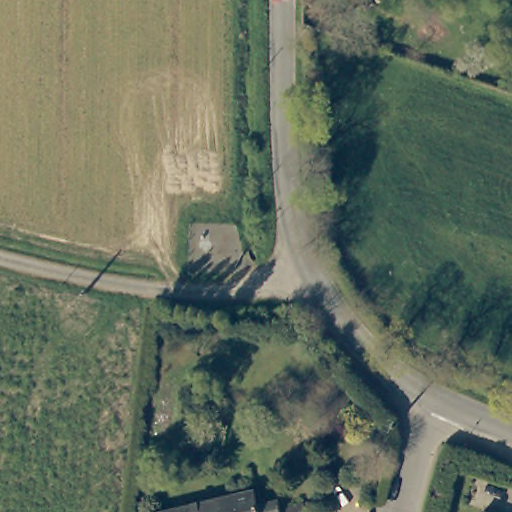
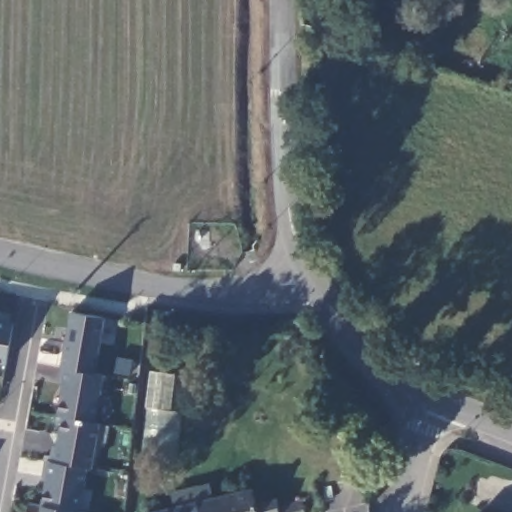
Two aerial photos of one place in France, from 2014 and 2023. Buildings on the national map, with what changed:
unchanged [(301,0),(308,0),(342,12),(337,35),(312,26),(301,22),(301,0)]
new [(95,373),(103,375),(95,422),(99,423),(91,469),(86,467),(80,512),(26,512),(28,502),(40,506),(44,483),(39,482),(43,460),(48,461),(52,462),(53,453),(50,452),(51,446),(56,446),(62,415),(57,413),(62,385),(57,383),(71,312),(104,318),(95,373)]
new [(6,366),(0,364),(0,320),(13,322),(6,366)]
new [(171,411),(144,407),(149,370),(174,374),(171,411)]
unchanged [(254,487),(258,501),(280,498),(283,512),(150,512),(254,487)]
unchanged [(288,504),(305,498),(309,512),(290,512),(288,504)]
unchanged [(499,512),(484,512),(486,507),(499,512)]

